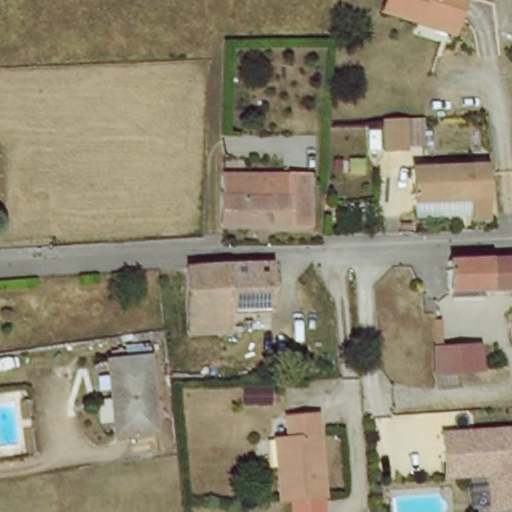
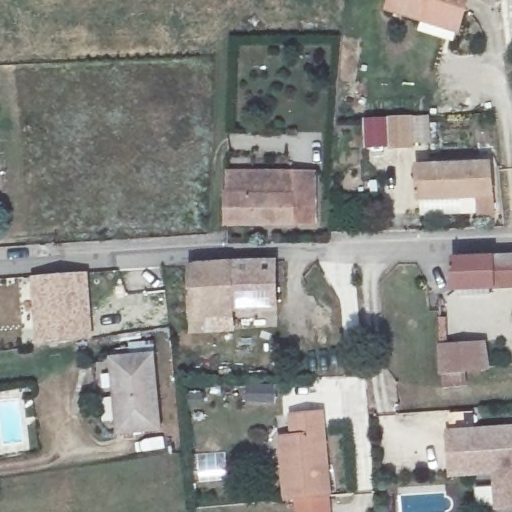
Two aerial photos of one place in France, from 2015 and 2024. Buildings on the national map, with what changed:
unchanged [(392,16),(397,0),(477,0),(464,35),(426,20),(424,28),(392,16)]
unchanged [(414,154),(394,154),(393,124),(414,124),(414,154)]
unchanged [(469,241),(469,238),(468,229),(467,202),(466,203),(422,204),(420,172),(493,170),(496,229),(497,240),(469,241)]
unchanged [(315,172),(317,219),(234,224),(232,176),(315,172)]
unchanged [(457,286),(457,256),(472,256),(512,254),(512,287),(457,286)]
unchanged [(211,271),(248,270),(280,269),(284,320),(233,323),(234,337),(197,339),(196,272),(211,271)]
new [(88,271),(94,338),(34,344),(29,275),(88,271)]
unchanged [(442,344),(484,343),(485,368),(442,369),(442,344)]
unchanged [(163,433),(121,437),(113,363),(153,358),(163,433)]
unchanged [(287,504),(283,470),(281,442),(287,441),(294,440),(292,419),(323,416),(333,499),(329,500),(330,512),(298,512),(297,503),(287,504)]
unchanged [(496,512),(495,479),(450,482),(450,465),(447,437),(512,433),(512,512),(496,512)]

